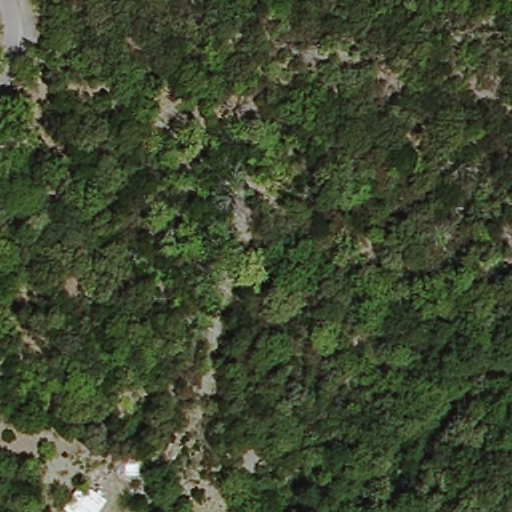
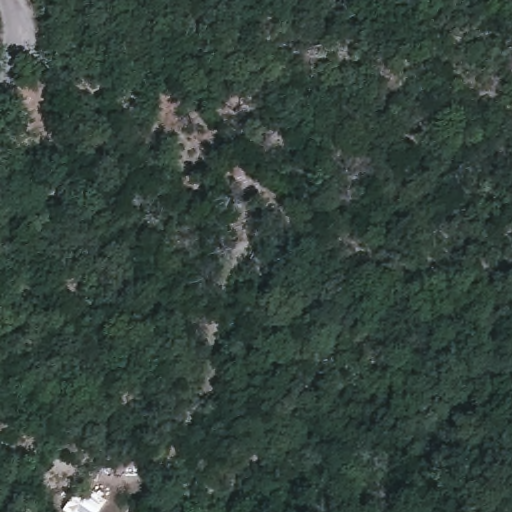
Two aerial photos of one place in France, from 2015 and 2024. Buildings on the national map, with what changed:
unchanged [(74,483),(82,488),(88,484),(104,495),(94,512),(68,512),(58,506),(74,483)]

